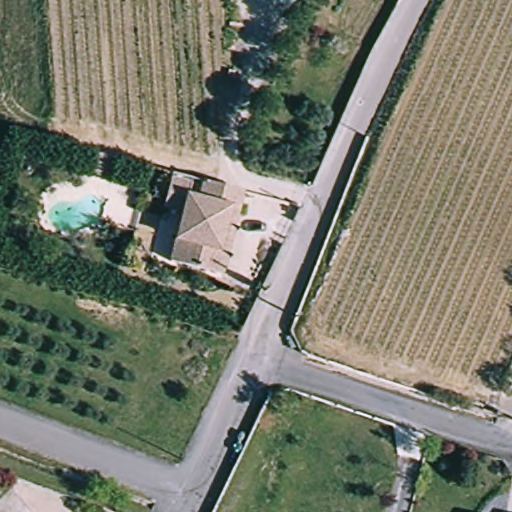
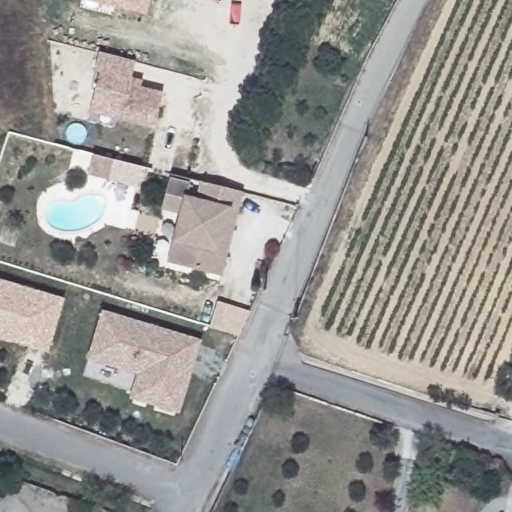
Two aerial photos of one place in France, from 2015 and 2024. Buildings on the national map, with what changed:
new [(125,10),(92,1),(92,0),(163,0),(159,18),(125,10)]
new [(103,70),(99,69),(103,51),(139,60),(135,76),(141,78),(139,85),(167,92),(158,126),(123,118),(118,116),(116,125),(91,119),(95,103),(103,70)]
unchanged [(109,160),(104,180),(85,175),(90,155),(109,160)]
unchanged [(226,256),(222,274),(172,261),(177,241),(186,205),(167,200),(174,175),(192,180),(243,192),(226,256)]
new [(0,339),(0,278),(66,298),(49,353),(0,339)]
new [(103,308),(202,338),(180,412),(131,398),(138,374),(87,358),(103,308)]

